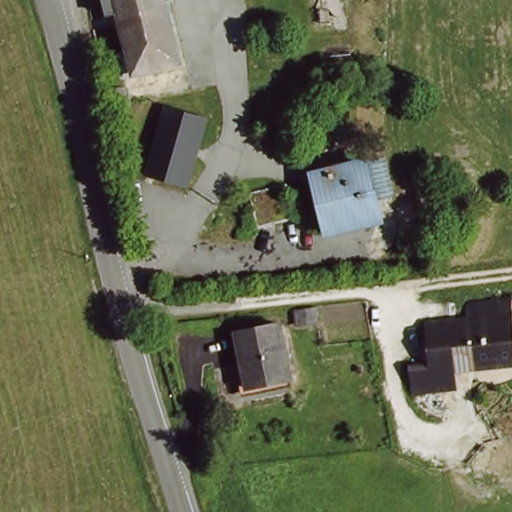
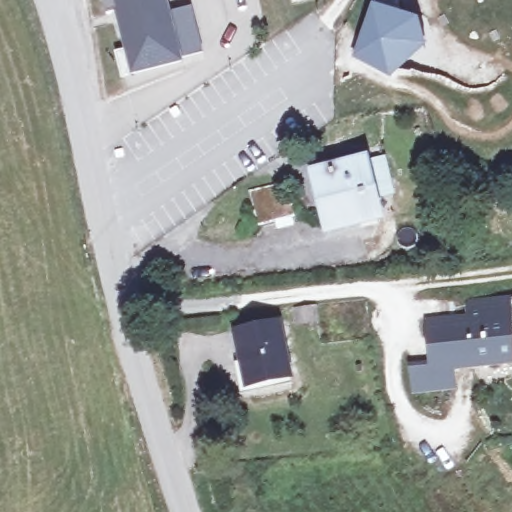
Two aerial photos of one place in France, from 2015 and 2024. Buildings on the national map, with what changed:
unchanged [(187,69),(127,83),(121,60),(126,58),(117,23),(114,23),(108,1),(96,2),(96,0),(170,0),(187,69)]
new [(428,49),(392,81),(354,58),(374,6),(420,20),(428,49)]
demolished [(146,178),(167,112),(206,124),(185,191),(146,178)]
unchanged [(382,186),(387,208),(333,220),(321,166),(391,150),(398,182),(382,186)]
unchanged [(256,193),(255,186),(272,182),(293,177),(301,212),(263,220),(256,193)]
unchanged [(412,365),(418,365),(435,363),(433,339),(476,335),(474,319),(512,314),(512,379),(423,390),(415,391),(412,365)]
unchanged [(292,374),(247,384),(236,330),(280,321),(292,374)]

